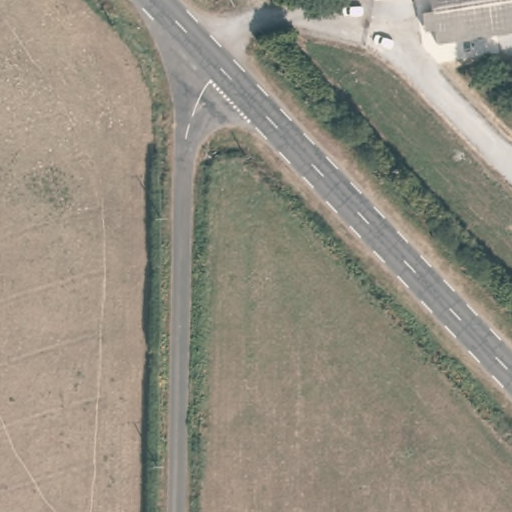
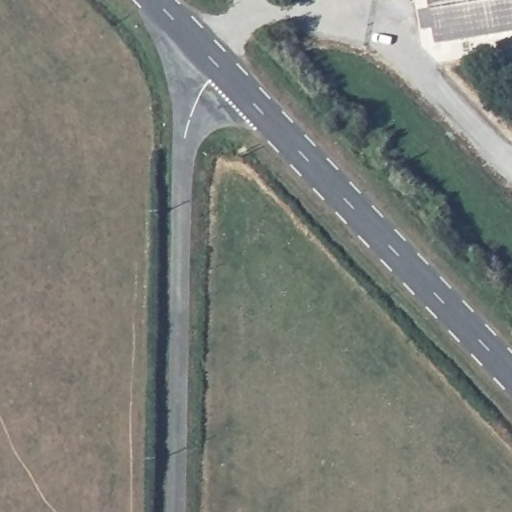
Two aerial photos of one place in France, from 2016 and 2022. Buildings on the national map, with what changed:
unchanged [(436,13),(434,0),(512,0),(512,32),(442,44),(440,31),(429,34),(425,16),(436,13)]

